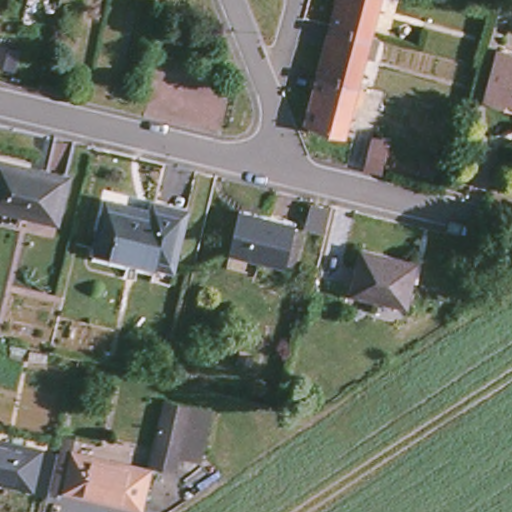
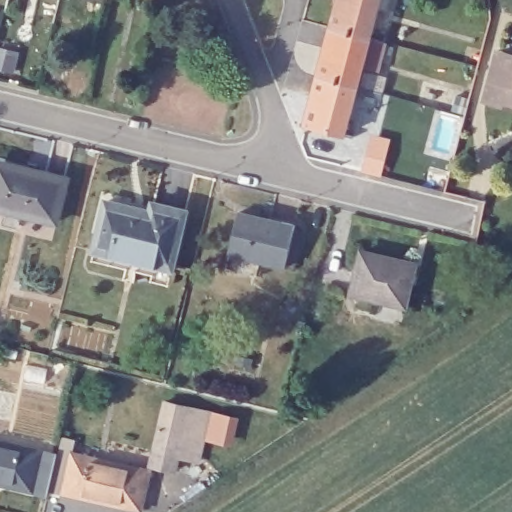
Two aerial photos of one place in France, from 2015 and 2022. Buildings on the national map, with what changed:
unchanged [(332,25),(338,0),(390,0),(388,9),(377,6),(369,35),(332,25)]
unchanged [(356,83),(320,72),(332,25),(369,35),(356,83)]
unchanged [(492,45),(512,50),(512,102),(480,93),(492,45)]
unchanged [(356,83),(344,132),(307,122),(320,72),(356,83)]
unchanged [(382,91),(370,138),(344,132),(356,83),(382,91)]
unchanged [(60,176),(50,218),(0,205),(0,169),(20,175),(22,166),(60,176)]
unchanged [(183,202),(167,267),(89,248),(103,194),(148,204),(151,193),(183,202)]
unchanged [(291,224),(282,264),(227,251),(237,211),(291,224)]
unchanged [(412,265),(403,304),(347,290),(356,252),(412,265)]
unchanged [(152,461),(155,443),(165,395),(188,401),(211,406),(201,452),(179,447),(176,465),(152,461)]
unchanged [(141,491),(139,501),(66,485),(52,482),(52,489),(30,484),(0,478),(0,436),(38,445),(60,449),(65,427),(79,430),(75,448),(147,463),(163,466),(158,494),(141,491)]

